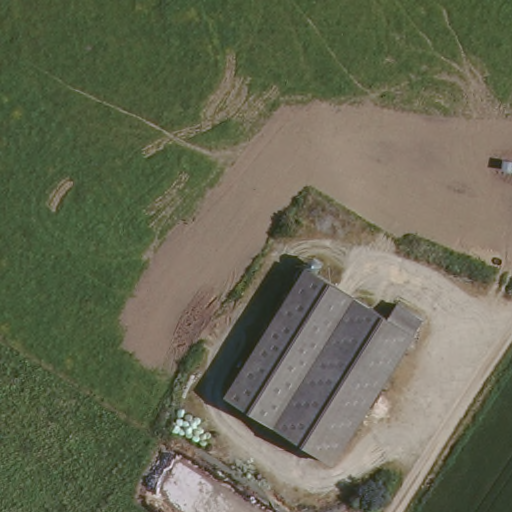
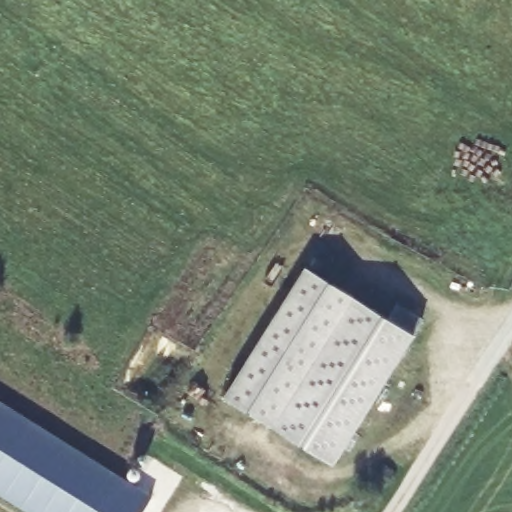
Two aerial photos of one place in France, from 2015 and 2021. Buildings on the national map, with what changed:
unchanged [(308,270),(386,316),(401,302),(425,315),(415,336),(333,467),(223,397),(308,270)]
new [(143,512),(28,512),(0,494),(0,402),(152,497),(143,512)]

